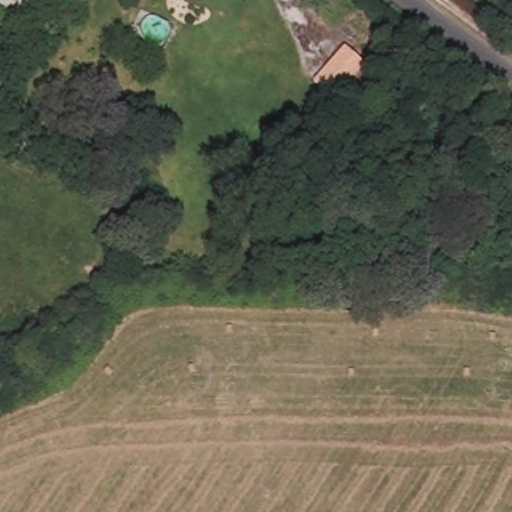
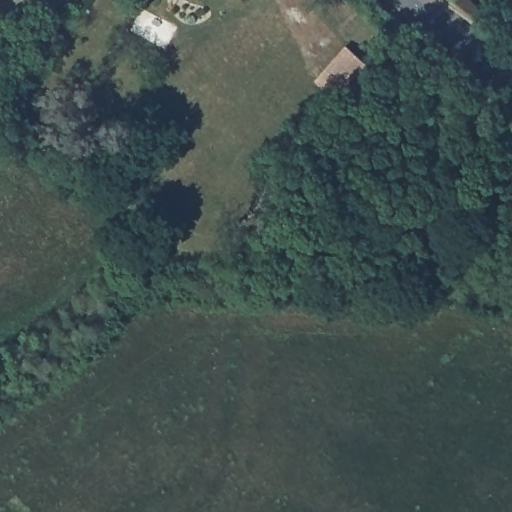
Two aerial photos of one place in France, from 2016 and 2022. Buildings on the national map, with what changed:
unchanged [(350,112),(342,105),(321,87),(352,52),(372,71),(380,78),(350,112)]

